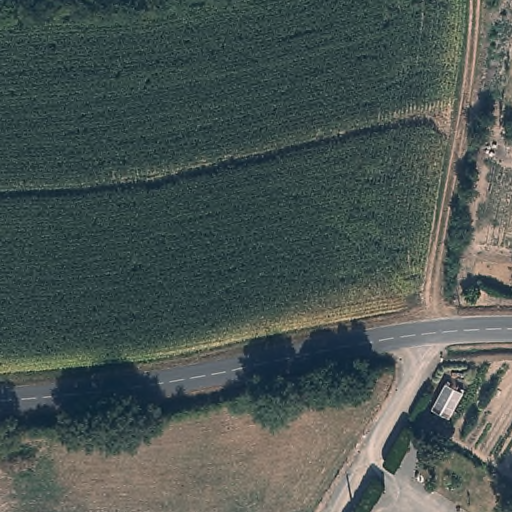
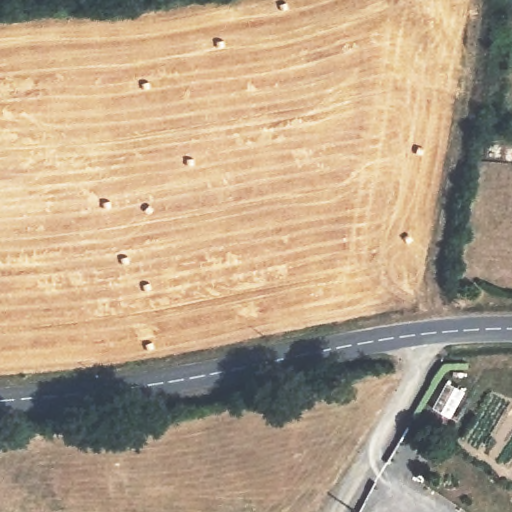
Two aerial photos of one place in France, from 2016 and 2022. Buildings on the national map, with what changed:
unchanged [(400,512),(395,512),(397,510),(400,512)]

